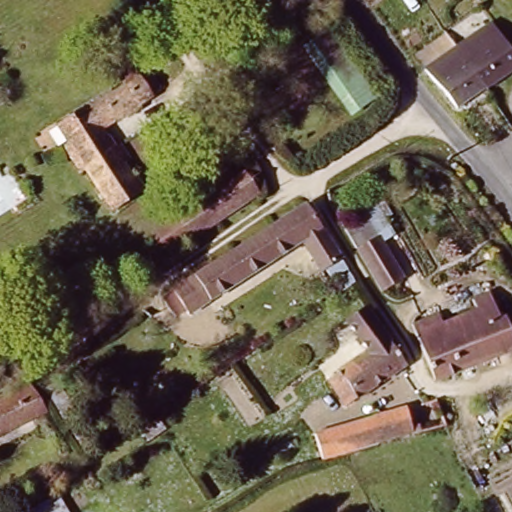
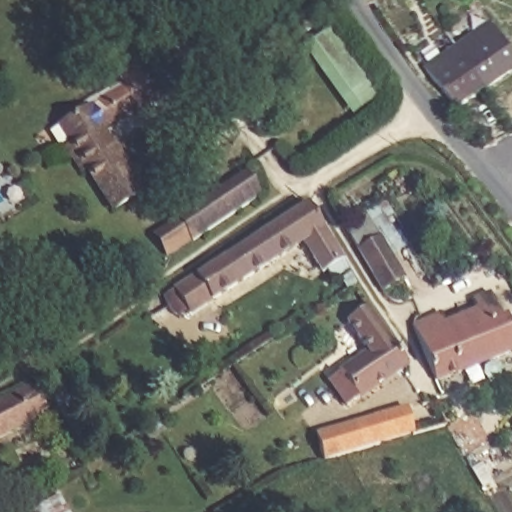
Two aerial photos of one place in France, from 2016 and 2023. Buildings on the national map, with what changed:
unchanged [(492,23),(512,53),(512,73),(456,109),(423,70),(492,23)]
unchanged [(378,100),(348,120),(301,50),(331,31),(378,100)]
unchanged [(146,81),(158,73),(171,91),(109,131),(147,190),(109,215),(49,121),(136,66),(146,81)]
unchanged [(264,195),(189,240),(172,212),(246,165),(264,195)]
unchanged [(327,284),(321,274),(301,242),(202,309),(191,290),(194,288),(189,282),(304,204),(341,262),(348,272),(327,284)]
unchanged [(361,208),(404,280),(381,294),(339,220),(361,208)]
unchanged [(366,308),(406,367),(360,403),(357,399),(345,408),(326,383),(366,354),(344,323),(366,308)]
unchanged [(509,339),(512,346),(512,352),(457,373),(440,325),(469,314),(471,320),(479,317),(482,326),(512,314),(512,337),(509,339)]
unchanged [(457,373),(434,382),(416,334),(432,328),(440,325),(457,373)]
unchanged [(38,429),(33,420),(0,439),(0,404),(30,388),(45,412),(50,421),(38,429)]
unchanged [(371,418),(411,406),(421,431),(381,442),(371,418)]
unchanged [(381,442),(323,462),(314,436),(371,418),(381,442)]
unchanged [(58,499),(67,512),(35,512),(58,499)]

